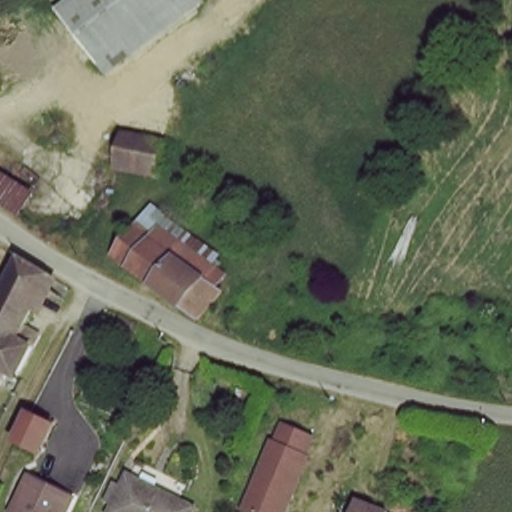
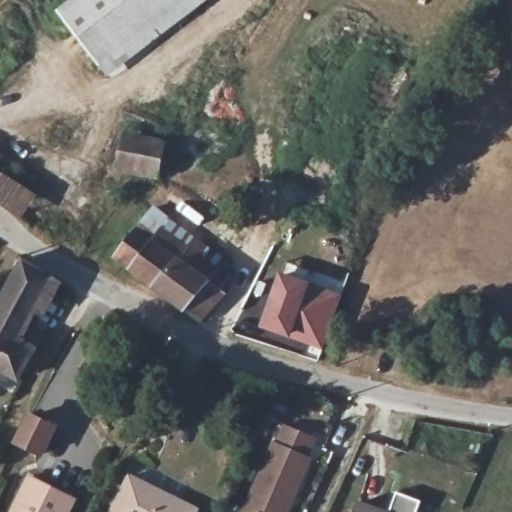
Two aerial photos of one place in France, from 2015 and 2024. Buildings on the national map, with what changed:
unchanged [(65,16),(85,0),(195,0),(108,68),(65,16)]
unchanged [(168,134),(161,167),(120,161),(126,127),(168,134)]
unchanged [(0,179),(32,199),(21,216),(0,203),(0,179)]
unchanged [(156,209),(222,257),(212,270),(206,266),(196,277),(136,235),(156,209)]
unchanged [(115,260),(136,235),(196,277),(206,266),(212,270),(226,281),(219,291),(223,294),(200,322),(115,260)]
unchanged [(15,343),(30,351),(13,380),(0,373),(0,298),(17,266),(47,282),(15,343)]
new [(278,271),(341,293),(322,350),(258,327),(278,271)]
unchanged [(118,385),(101,377),(111,353),(102,347),(116,317),(143,333),(118,385)]
unchanged [(54,427),(42,453),(18,441),(31,416),(54,427)]
unchanged [(290,512),(247,512),(243,511),(281,419),(321,436),(290,512)]
unchanged [(24,473),(68,493),(60,512),(6,512),(24,473)]
unchanged [(132,484),(192,512),(120,512),(132,484)]
unchanged [(357,502),(379,512),(353,512),(357,502)]

